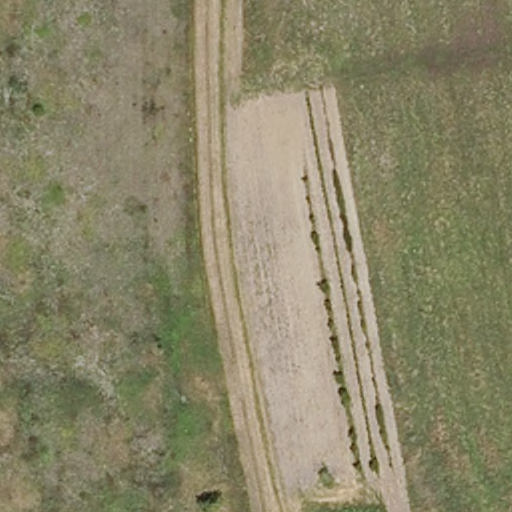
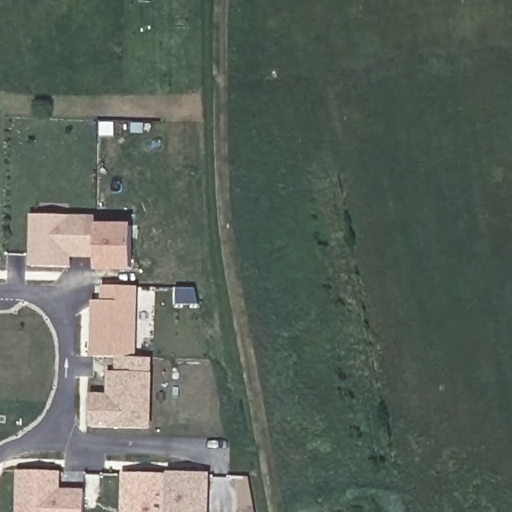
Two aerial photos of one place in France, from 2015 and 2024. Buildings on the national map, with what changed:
new [(32,219),(94,220),(94,227),(94,256),(67,256),(67,268),(31,267),(32,219)]
new [(94,256),(94,227),(130,228),(131,270),(94,269),(94,256)]
new [(104,305),(104,289),(134,290),(133,306),(132,361),(93,360),(94,305),(104,305)]
new [(89,427),(90,392),(107,393),(108,372),(115,372),(115,360),(132,361),(132,358),(153,358),(151,430),(89,427)]
new [(206,473),(205,512),(166,512),(167,472),(206,473)]
new [(17,474),(56,475),(55,495),(82,496),(82,512),(17,512),(17,474)]
new [(123,476),(164,477),(164,512),(122,512),(123,476)]

